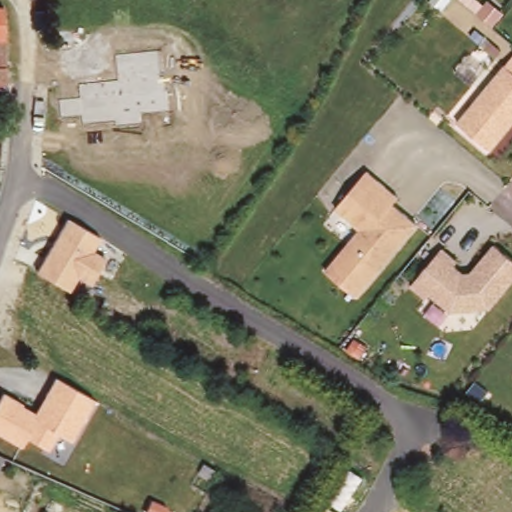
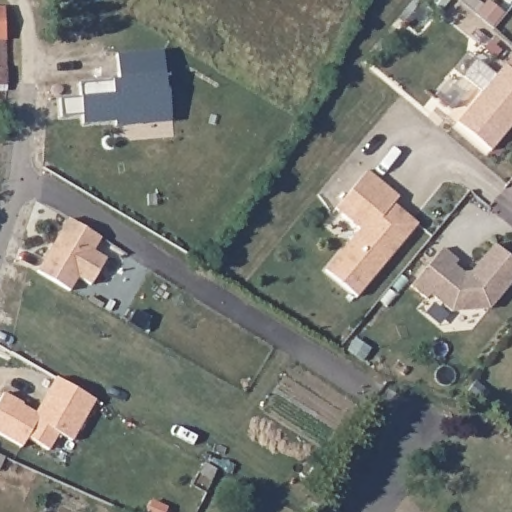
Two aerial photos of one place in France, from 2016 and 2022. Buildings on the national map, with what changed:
unchanged [(3,7),(7,85),(0,85),(0,7),(3,7)]
new [(142,125),(116,126),(116,121),(83,124),(83,115),(61,117),(60,99),(81,98),(80,84),(118,81),(116,55),(158,51),(161,77),(164,77),(166,90),(168,90),(170,113),(171,123),(142,125)]
unchanged [(512,122),(493,144),(460,116),(508,58),(512,61),(512,122)]
unchanged [(414,228),(362,290),(331,264),(366,222),(341,202),(364,175),(373,164),(404,190),(399,197),(423,217),(414,228)]
unchanged [(69,217),(103,236),(96,249),(109,257),(93,286),(78,276),(71,290),(38,270),(69,217)]
unchanged [(462,257),(457,261),(463,267),(469,267),(496,239),(512,253),(512,283),(492,304),(451,307),(430,288),(424,294),(410,280),(447,243),(462,257)]
unchanged [(5,392),(37,411),(57,375),(99,399),(75,441),(60,432),(50,449),(30,437),(24,447),(0,433),(0,402),(5,392)]
unchanged [(4,456),(0,465),(0,454),(4,456)]

